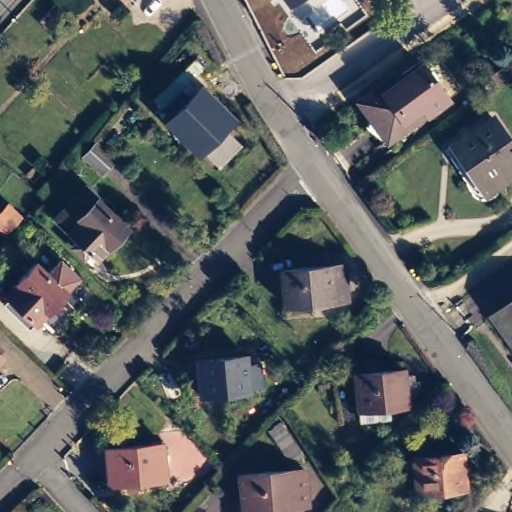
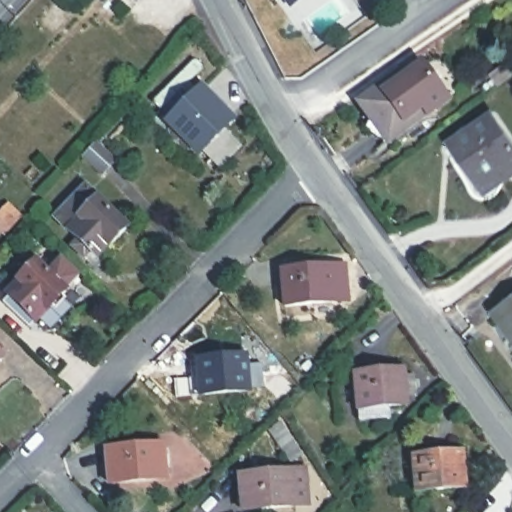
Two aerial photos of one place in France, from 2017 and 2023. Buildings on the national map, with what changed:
unchanged [(283,0),(299,0),(288,7),(283,0)]
unchanged [(397,71),(400,74),(417,61),(445,97),(428,111),(390,142),(359,102),(397,71)]
unchanged [(197,157),(163,123),(200,82),(237,119),(197,157)]
unchanged [(485,107),(512,144),(512,159),(481,182),(448,135),(485,107)]
unchanged [(93,134),(111,152),(100,164),(81,146),(93,134)]
unchanged [(88,178),(100,189),(98,190),(129,220),(112,238),(111,237),(100,250),(95,245),(89,250),(78,240),(83,234),(59,212),(88,178)]
unchanged [(18,276),(16,273),(35,255),(47,266),(60,252),(77,270),(35,313),(8,287),(18,276)]
unchanged [(330,258),(330,262),(341,262),(344,288),(333,289),(333,294),(285,298),(281,264),(330,258)]
unchanged [(512,294),(512,314),(502,301),(512,294)]
unchanged [(0,350),(0,347),(1,348),(0,350)]
unchanged [(243,353),(247,387),(198,392),(195,358),(243,353)]
unchanged [(403,363),(404,368),(413,368),(415,387),(405,388),(406,396),(358,401),(355,368),(403,363)]
unchanged [(166,438),(171,470),(118,476),(114,443),(166,438)]
unchanged [(462,447),(465,480),(418,483),(415,451),(462,447)]
unchanged [(296,465),(297,470),(305,469),(309,497),(248,503),(245,471),(296,465)]

